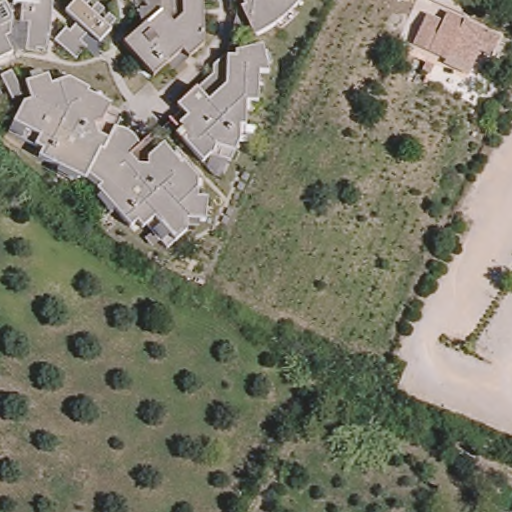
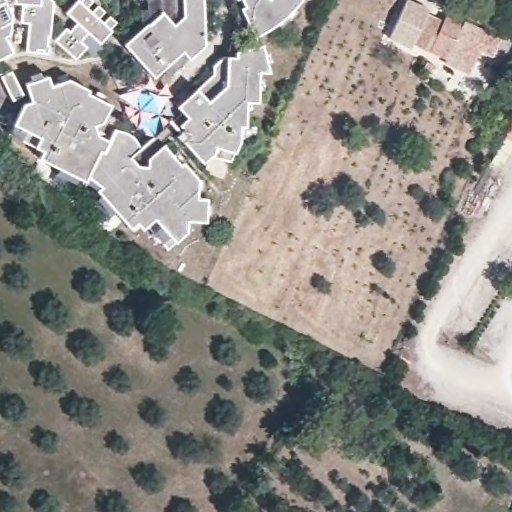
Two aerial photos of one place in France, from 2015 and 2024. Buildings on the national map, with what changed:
unchanged [(14,37),(9,40),(16,56),(0,64),(0,0),(7,0),(15,17),(14,37)]
unchanged [(51,58),(28,56),(31,27),(24,26),(25,7),(16,6),(17,0),(51,0),(56,4),(51,58)]
unchanged [(113,33),(111,32),(100,46),(91,37),(83,45),(88,49),(81,57),(76,61),(55,43),(66,30),(70,33),(78,25),(66,15),(78,1),(77,0),(95,0),(122,23),(113,33)]
unchanged [(135,15),(143,8),(143,0),(200,0),(200,45),(186,59),(183,56),(156,81),(123,46),(143,25),(135,15)]
unchanged [(278,29),(276,30),(268,35),(264,37),(261,37),(243,0),(306,0),(298,11),(278,29)]
unchanged [(441,21),(446,14),(499,41),(492,57),(481,54),(467,74),(413,44),(425,16),(441,21)]
unchanged [(268,71),(258,70),(256,101),(244,100),(244,124),(238,125),(238,139),(228,160),(208,154),(200,161),(174,133),(180,127),(177,123),(185,115),(175,104),(211,71),(211,64),(221,55),(233,54),(233,50),(261,43),(268,71)]
unchanged [(12,98),(0,77),(0,75),(9,70),(21,94),(12,98)]
unchanged [(125,132),(133,137),(136,142),(138,145),(128,154),(136,163),(145,164),(146,156),(161,143),(178,162),(181,160),(196,177),(195,195),(205,197),(204,220),(186,219),(184,230),(164,247),(144,223),(139,227),(134,221),(128,227),(94,188),(83,180),(36,156),(39,149),(6,130),(21,102),(28,99),(23,82),(45,74),(48,84),(66,77),(87,88),(86,91),(109,103),(104,113),(116,119),(111,127),(119,129),(125,132)]

